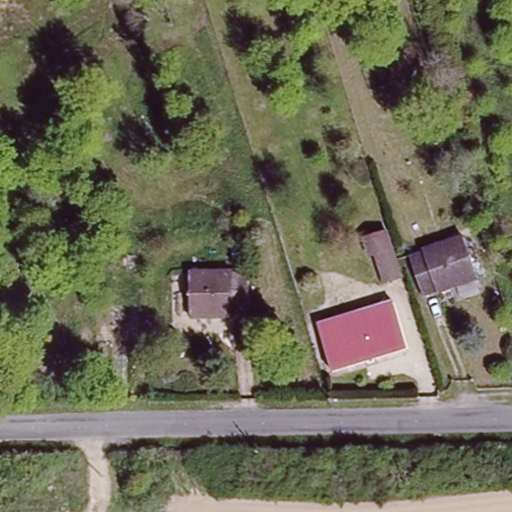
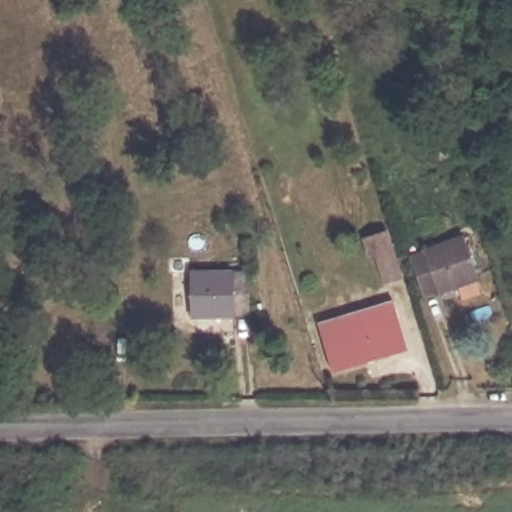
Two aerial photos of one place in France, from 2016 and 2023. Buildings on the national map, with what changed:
unchanged [(403,278),(389,283),(380,256),(372,258),(365,237),(387,230),(403,278)]
unchanged [(465,240),(475,277),(420,291),(410,254),(465,240)]
unchanged [(248,272),(248,308),(188,309),(187,273),(248,272)]
unchanged [(390,349),(328,366),(317,324),(380,308),(390,349)]

